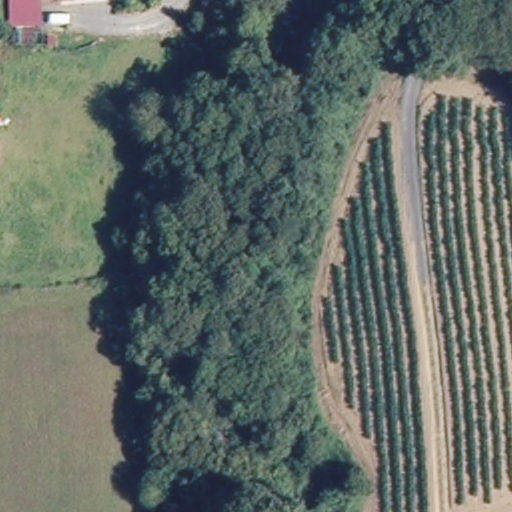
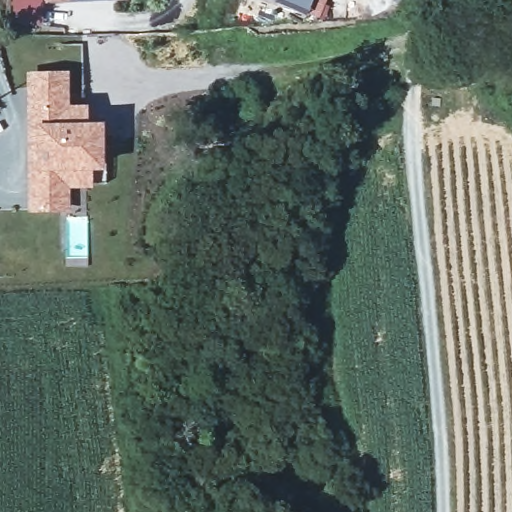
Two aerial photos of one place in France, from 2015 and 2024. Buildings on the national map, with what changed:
unchanged [(45,5),(45,31),(9,32),(8,0),(55,0),(55,4),(45,5)]
unchanged [(55,4),(55,0),(113,0),(114,4),(100,5),(55,4)]
new [(307,12),(306,16),(268,0),(327,0),(320,18),(307,12)]
new [(25,72),(67,72),(69,106),(85,106),(86,124),(102,124),(102,171),(91,171),(90,188),(69,188),(69,212),(27,212),(25,72)]

